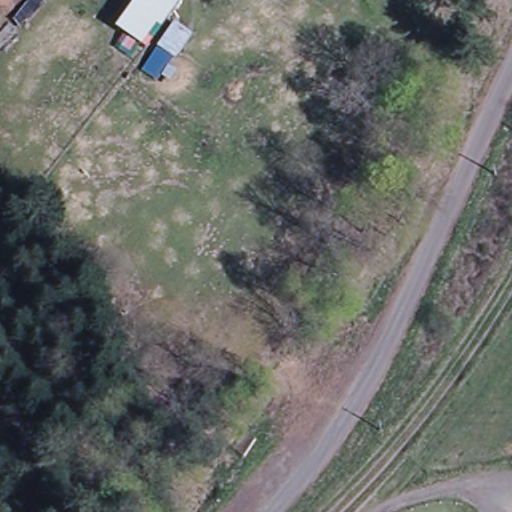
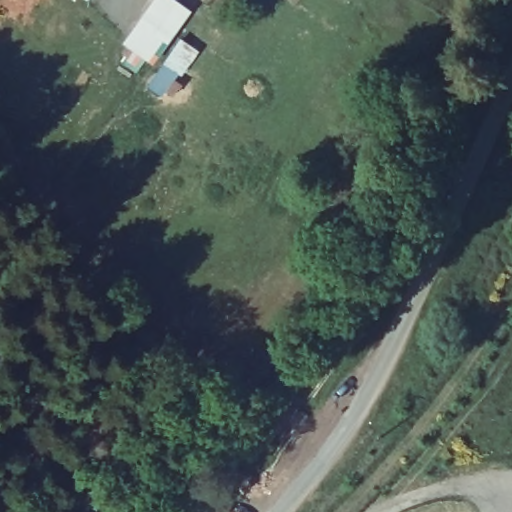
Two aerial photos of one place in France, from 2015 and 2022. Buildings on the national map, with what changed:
unchanged [(190,8),(148,70),(125,56),(145,28),(140,23),(157,0),(176,0),(190,8)]

